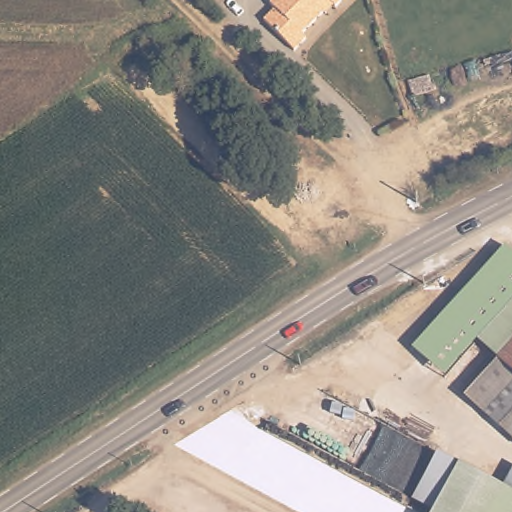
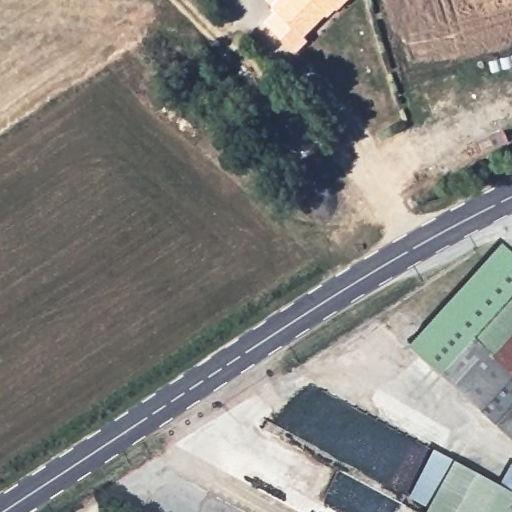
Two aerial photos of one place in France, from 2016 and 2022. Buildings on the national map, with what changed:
unchanged [(289,0),(348,0),(337,10),(333,5),(317,21),(322,27),(310,38),(278,10),(289,0)]
unchanged [(512,247),(512,433),(413,344),(506,242),(512,247)]
unchanged [(438,451),(461,463),(503,485),(512,470),(512,512),(430,512),(412,500),(438,451)]

